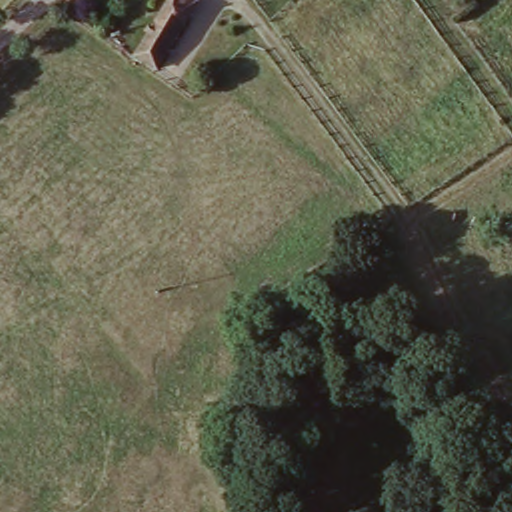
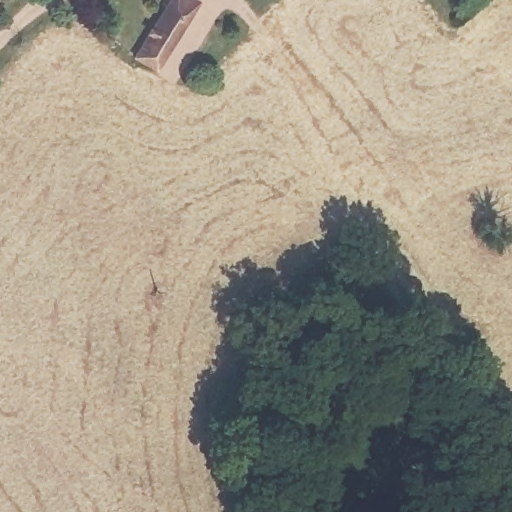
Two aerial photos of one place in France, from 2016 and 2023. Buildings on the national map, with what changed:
unchanged [(174,0),(189,0),(200,7),(181,35),(157,69),(138,55),(174,0)]

